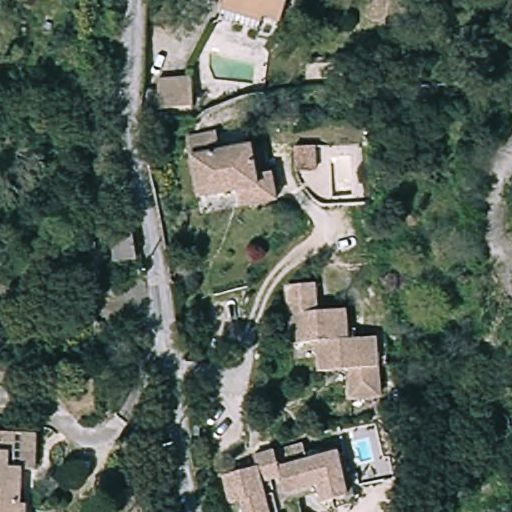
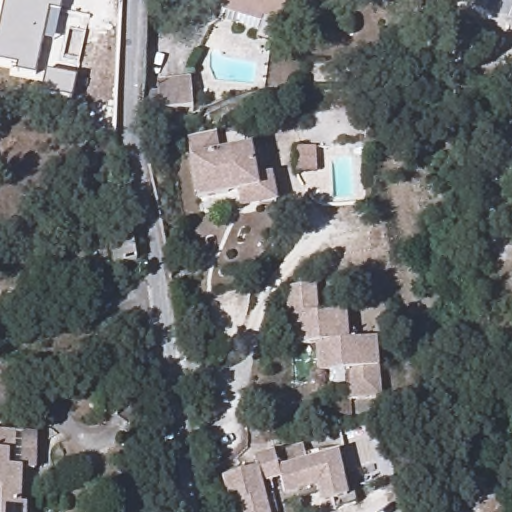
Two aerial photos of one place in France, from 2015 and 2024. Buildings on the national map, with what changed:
new [(54,42),(44,39),(36,74),(16,71),(18,64),(0,60),(0,24),(4,0),(63,0),(54,42)]
unchanged [(283,21),(265,15),(260,29),(223,16),(228,0),(290,0),(283,21)]
new [(77,78),(72,101),(42,96),(46,72),(77,78)]
unchanged [(157,110),(155,81),(189,78),(190,108),(157,110)]
unchanged [(278,206),(241,212),(239,197),(199,204),(189,147),(219,142),(221,157),(254,152),(258,179),(273,176),(278,206)]
unchanged [(305,170),(305,145),(323,145),(323,169),(305,170)]
unchanged [(136,236),(140,261),(128,263),(119,265),(115,239),(136,236)]
unchanged [(317,311),(344,309),(345,336),(373,335),(377,395),(350,396),(348,366),(320,368),(318,338),(291,340),(288,285),(315,283),(317,311)]
unchanged [(19,466),(12,466),(13,488),(19,488),(20,512),(0,512),(0,427),(18,427),(19,466)]
unchanged [(227,504),(220,477),(256,468),(253,457),(275,452),(275,454),(303,448),(306,460),(338,452),(349,497),(323,504),(318,485),(287,493),(283,478),(260,484),(267,512),(242,512),(240,501),(227,504)]

